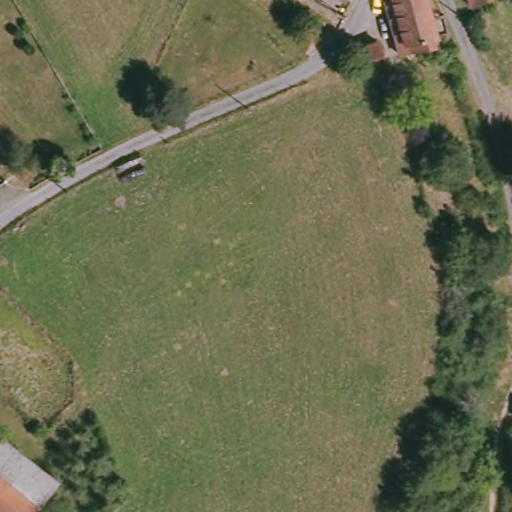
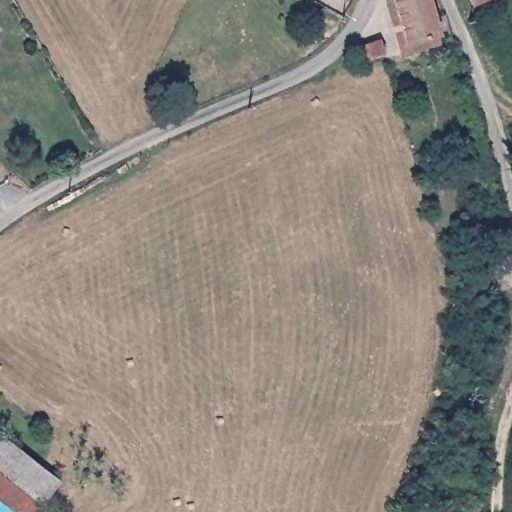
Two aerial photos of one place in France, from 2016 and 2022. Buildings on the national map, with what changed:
unchanged [(452,39),(400,53),(389,0),(422,0),(427,23),(441,21),(452,39)]
unchanged [(474,9),(468,0),(488,0),(474,9)]
unchanged [(360,58),(357,39),(378,34),(382,52),(360,58)]
unchanged [(28,512),(0,512),(0,434),(54,476),(28,512)]

